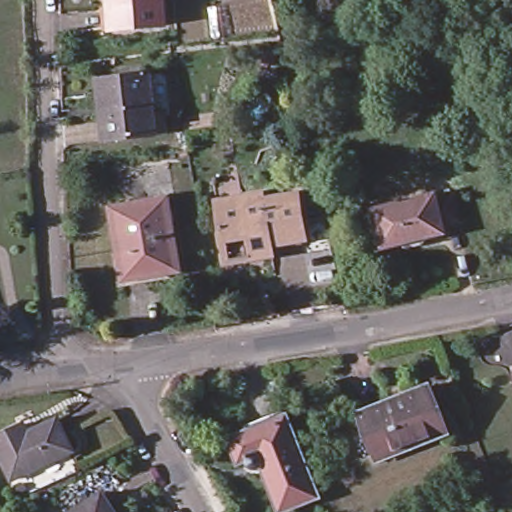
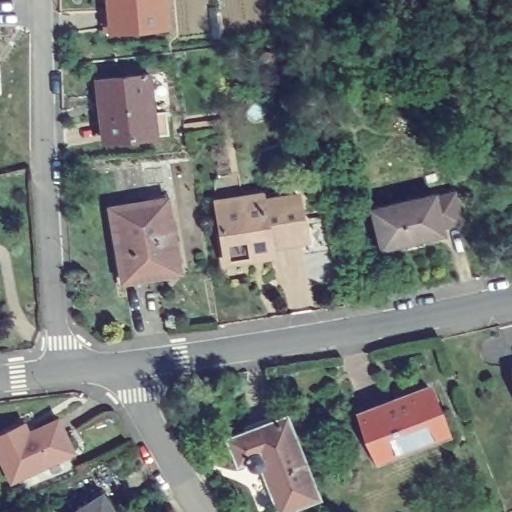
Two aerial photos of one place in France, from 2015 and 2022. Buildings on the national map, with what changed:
unchanged [(109,0),(160,0),(162,31),(112,35),(109,0)]
unchanged [(167,134),(109,140),(107,120),(102,121),(97,81),(148,75),(152,114),(165,112),(167,134)]
unchanged [(434,193),(435,196),(454,191),(460,220),(442,225),(444,232),(425,236),(425,237),(422,243),(405,247),(400,243),(399,242),(380,246),(372,207),(434,193)]
unchanged [(218,214),(243,210),(241,199),(262,196),(262,200),(297,195),(305,240),(252,248),(254,258),(227,263),(218,214)]
unchanged [(115,209),(171,200),(178,242),(170,244),(175,272),(127,281),(115,209)]
unchanged [(442,436),(377,461),(359,414),(428,387),(430,391),(447,434),(442,436)]
unchanged [(237,463),(229,440),(285,417),(317,498),(280,512),(262,466),(257,467),(253,466),(250,463),(247,460),(237,463)]
unchanged [(0,435),(23,424),(27,433),(34,430),(57,420),(72,452),(11,481),(0,458),(0,435)]
unchanged [(15,488),(24,484),(27,491),(19,495),(15,488)]
unchanged [(75,512),(102,494),(113,512),(75,512)]

